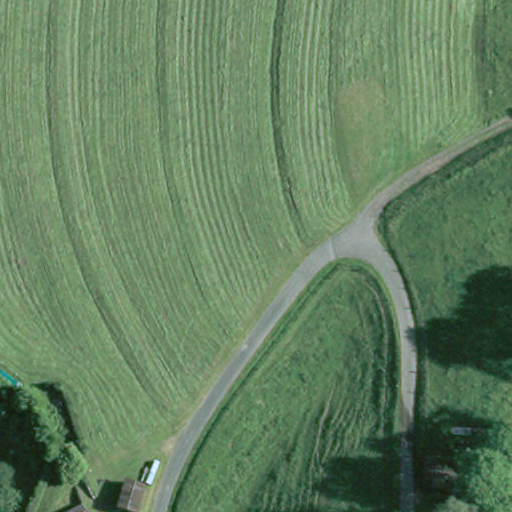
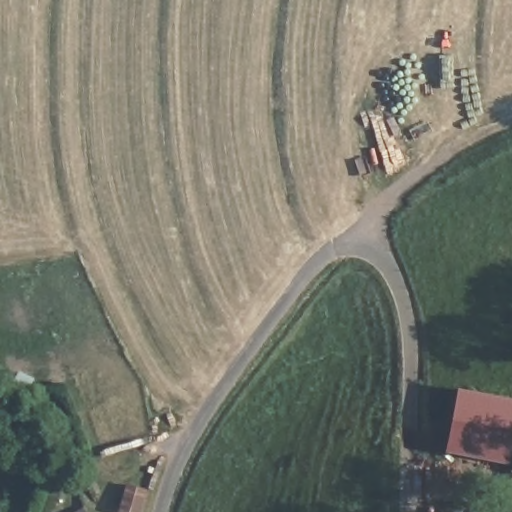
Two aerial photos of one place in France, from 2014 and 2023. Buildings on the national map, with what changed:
new [(458,388),(512,398),(512,449),(509,464),(445,451),(458,388)]
unchanged [(82,505),(86,512),(68,512),(82,505)]

